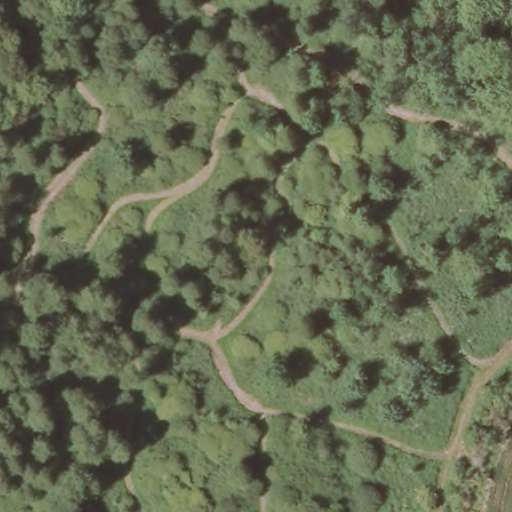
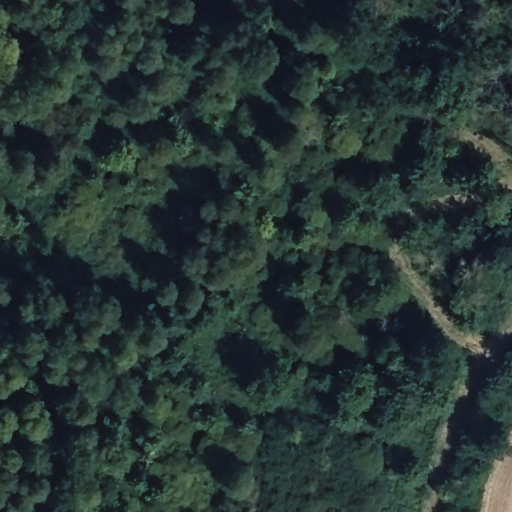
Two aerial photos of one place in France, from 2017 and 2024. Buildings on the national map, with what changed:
[]

